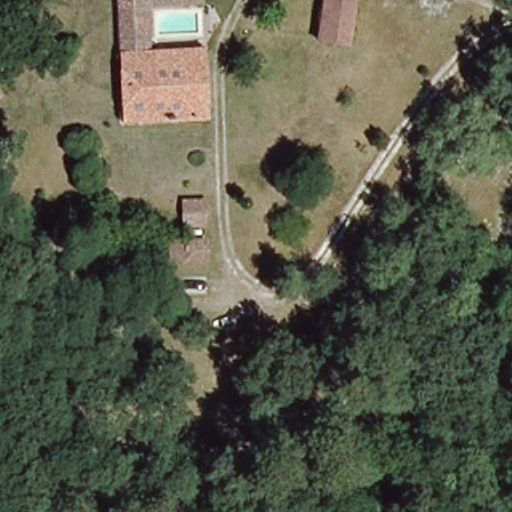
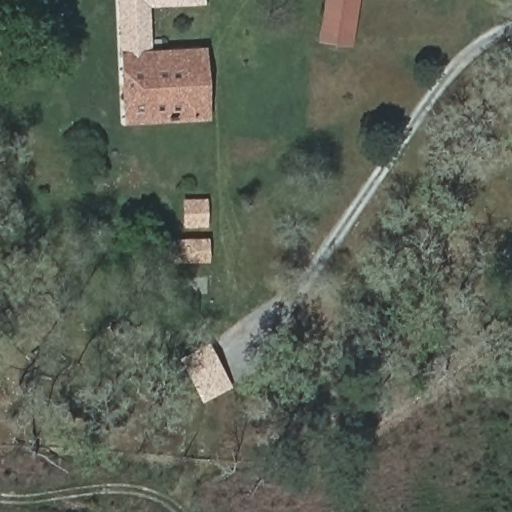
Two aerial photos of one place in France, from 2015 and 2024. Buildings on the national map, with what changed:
unchanged [(150,6),(150,54),(210,55),(210,126),(121,125),(118,0),(198,0),(198,7),(150,6)]
unchanged [(352,48),(320,43),(324,0),(357,0),(352,48)]
unchanged [(182,224),(184,195),(209,196),(206,225),(182,224)]
unchanged [(172,262),(174,239),(207,240),(209,263),(172,262)]
new [(210,342),(232,387),(204,404),(180,358),(210,342)]

